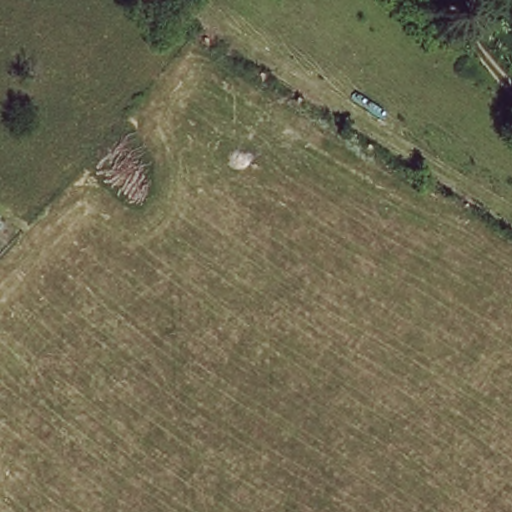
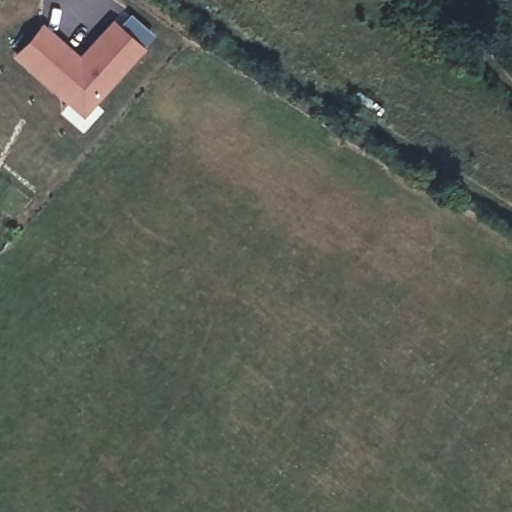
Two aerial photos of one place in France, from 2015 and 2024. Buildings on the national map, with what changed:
new [(78,54),(111,18),(143,46),(82,116),(13,55),(42,22),(78,54)]

